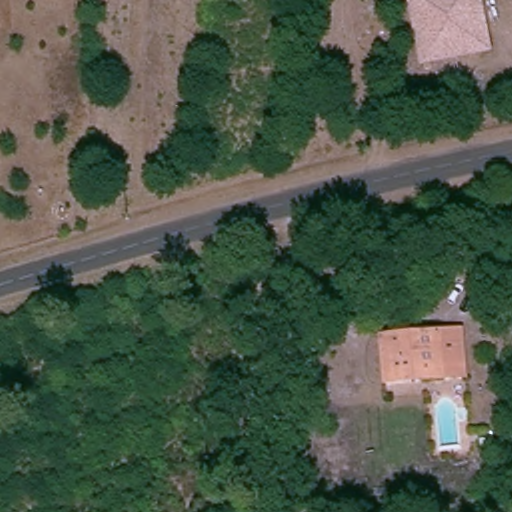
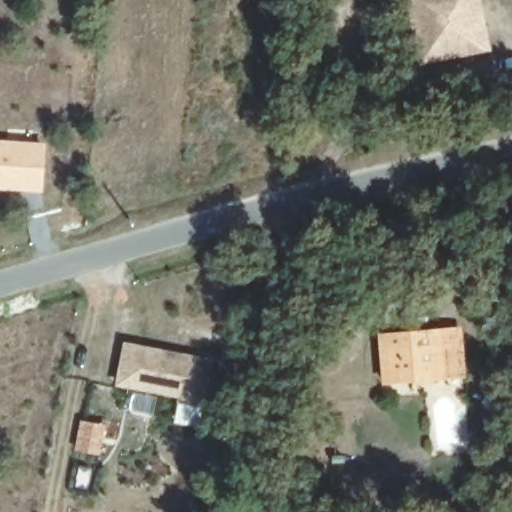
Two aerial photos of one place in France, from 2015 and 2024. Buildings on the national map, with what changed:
unchanged [(492,51),(420,65),(407,0),(481,0),(492,51)]
new [(46,142),(42,193),(0,190),(0,139),(46,142)]
unchanged [(479,283),(463,277),(471,253),(487,259),(479,283)]
unchanged [(374,381),(368,336),(432,328),(452,326),(458,371),(437,374),(418,376),(397,378),(374,381)]
new [(214,358),(205,401),(116,384),(125,341),(214,358)]

